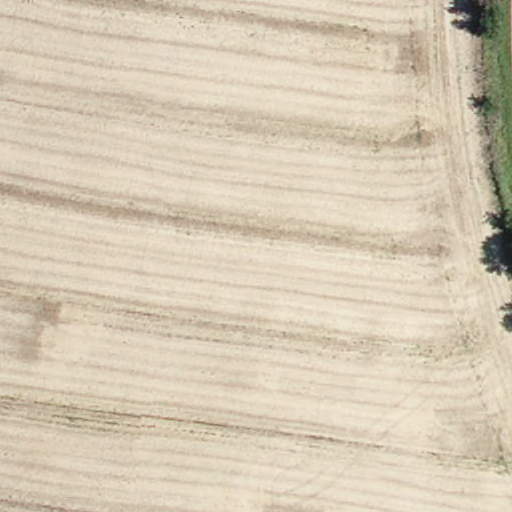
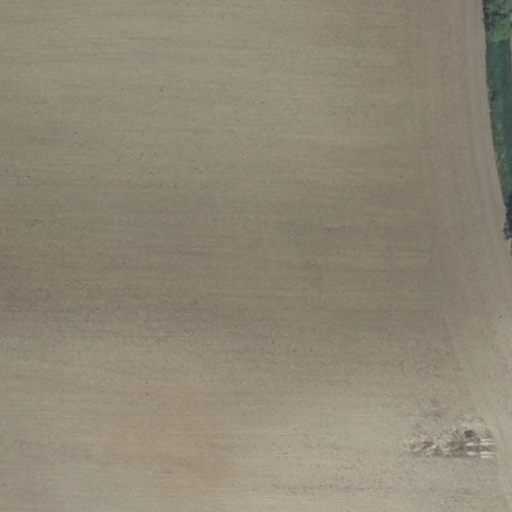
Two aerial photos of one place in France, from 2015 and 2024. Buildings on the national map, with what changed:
[]

